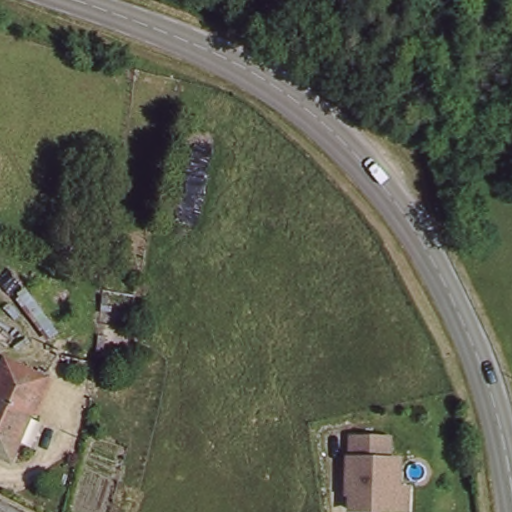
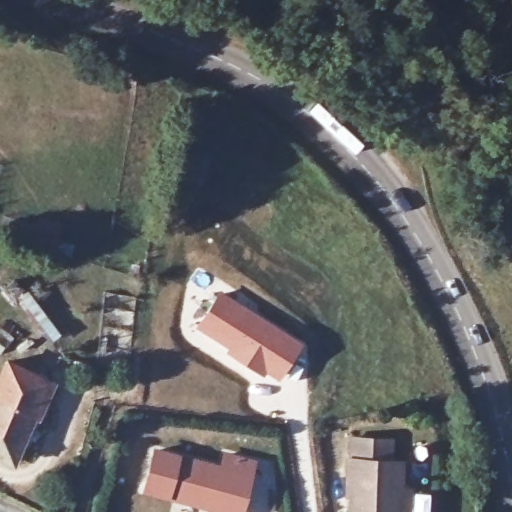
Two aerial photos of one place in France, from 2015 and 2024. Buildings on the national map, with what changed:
new [(219,291),(235,299),(304,341),(276,381),(265,374),(263,377),(223,352),(225,349),(196,329),(219,291)]
unchanged [(13,465),(0,460),(0,371),(1,368),(45,386),(13,465)]
unchanged [(410,505),(393,505),(348,504),(348,480),(346,480),(347,435),(385,435),(385,455),(398,455),(398,481),(410,481),(410,505)]
new [(240,512),(208,512),(208,510),(166,498),(141,492),(152,447),(180,453),(218,463),(221,451),(256,458),(240,512)]

